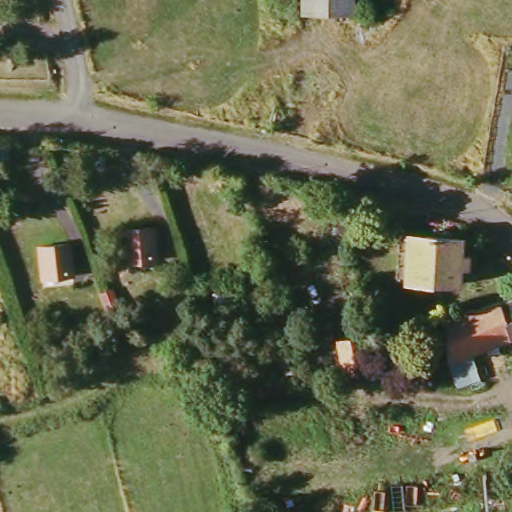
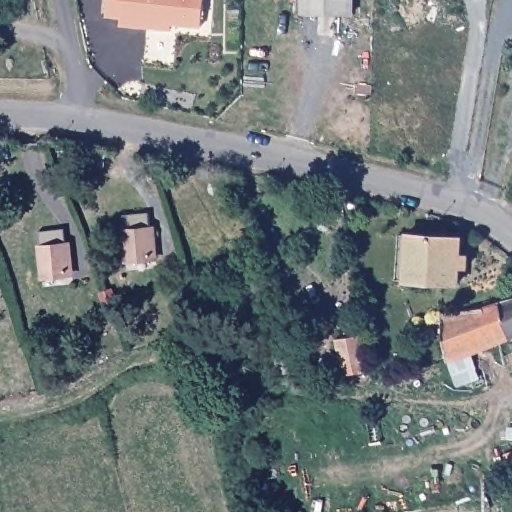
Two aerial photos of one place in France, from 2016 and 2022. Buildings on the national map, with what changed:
new [(120,27),(120,19),(105,17),(107,0),(205,0),(202,29),(172,26),(171,31),(120,27)]
unchanged [(302,12),(302,0),(351,0),(351,12),(302,12)]
unchanged [(157,254),(127,259),(123,230),(152,226),(157,254)]
unchanged [(464,235),(460,280),(408,277),(412,230),(464,235)]
unchanged [(69,272),(43,274),(40,245),(65,242),(69,272)]
unchanged [(452,360),(444,316),(468,314),(512,302),(512,335),(452,360)]
unchanged [(352,363),(346,330),(370,327),(375,361),(352,363)]
unchanged [(503,482),(512,479),(512,508),(503,482)]

